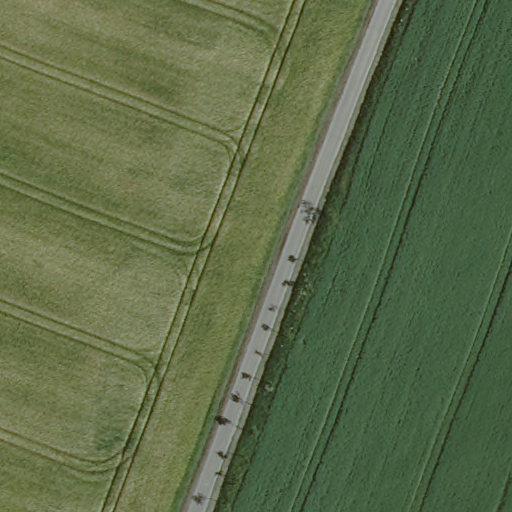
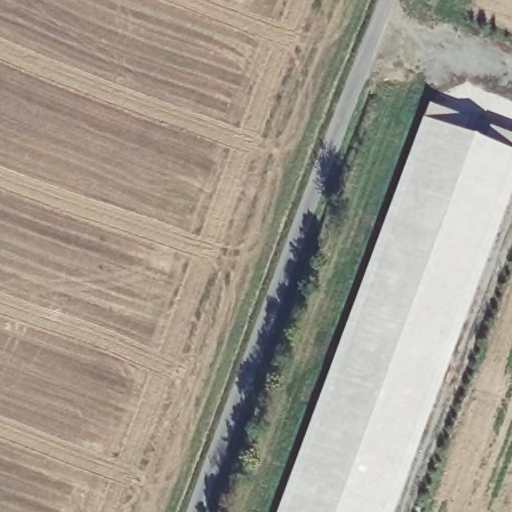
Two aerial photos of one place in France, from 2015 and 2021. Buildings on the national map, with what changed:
new [(512,153),(512,190),(393,512),(277,512),(422,120),(512,153)]

